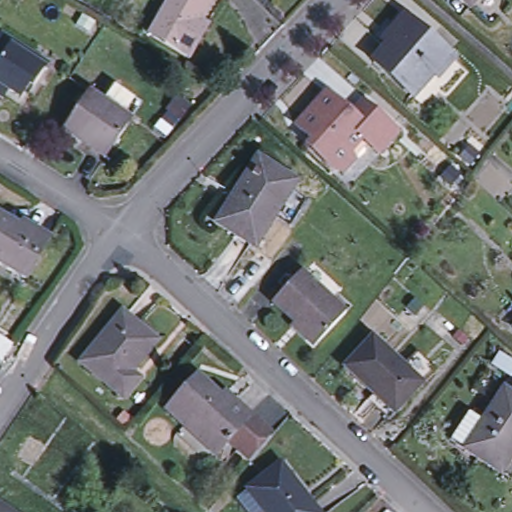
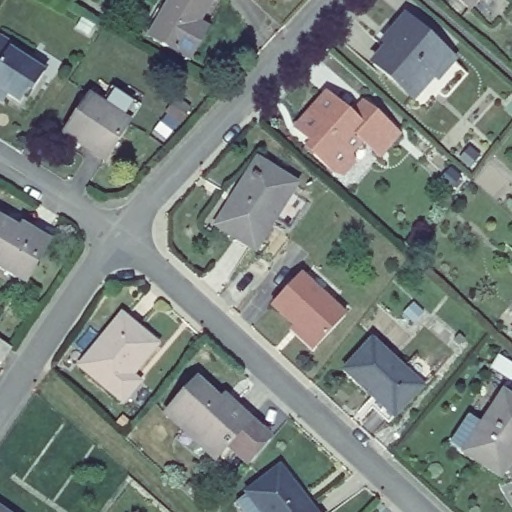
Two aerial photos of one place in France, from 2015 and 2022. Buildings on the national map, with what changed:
unchanged [(201,40),(188,61),(148,37),(170,0),(213,0),(192,35),(201,40)]
unchanged [(460,0),(476,0),(468,8),(460,0)]
unchanged [(389,36),(405,19),(450,57),(413,98),(373,65),(395,40),(389,36)]
unchanged [(13,45),(32,57),(29,62),(45,72),(33,92),(29,90),(21,102),(0,89),(0,43),(10,50),(13,45)]
unchanged [(326,95),(351,117),(362,105),(396,137),(379,156),(362,141),(350,155),(352,164),(342,175),(333,173),(307,151),(312,145),(295,130),(326,95)]
unchanged [(129,124),(105,162),(63,135),(87,97),(129,124)]
unchanged [(255,252),(216,227),(235,198),(257,162),(263,166),(295,187),(255,252)]
unchanged [(25,282),(0,269),(0,223),(44,247),(25,282)]
unchanged [(290,332),(295,327),(272,307),(300,276),(346,317),(318,348),(314,353),(290,332)]
unchanged [(157,346),(132,377),(140,383),(125,402),(82,368),(122,318),(157,346)]
unchanged [(12,350),(2,365),(0,363),(0,342),(7,347),(12,350)]
unchanged [(371,342),(421,388),(393,418),(344,373),(371,342)]
unchanged [(260,436),(240,461),(218,440),(206,452),(160,410),(190,378),(233,419),(237,415),(260,436)]
unchanged [(509,401),(512,396),(512,468),(504,481),(472,459),(458,450),(475,422),(490,432),(509,401)]
unchanged [(278,470),(312,512),(260,512),(246,495),(278,470)]
unchanged [(0,511),(1,512),(0,512),(0,511)]

